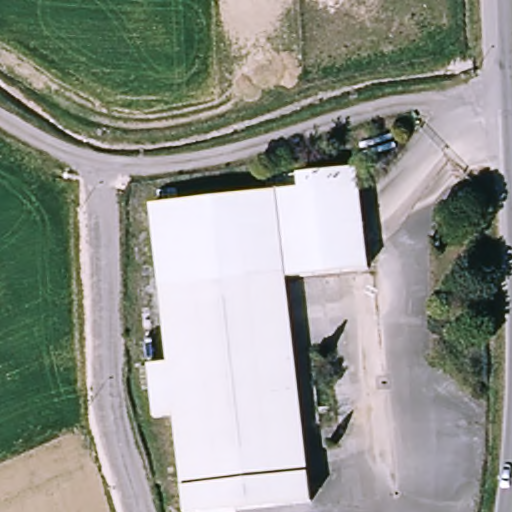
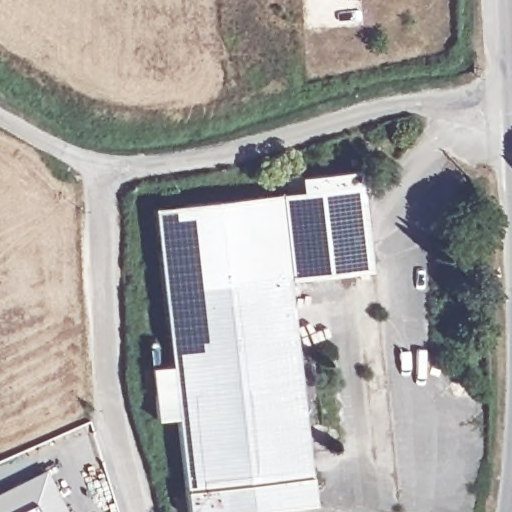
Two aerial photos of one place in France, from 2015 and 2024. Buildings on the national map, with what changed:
unchanged [(280,282),(314,505),(265,512),(188,512),(175,424),(155,428),(148,379),(168,376),(145,214),(201,207),(291,194),(289,180),(350,171),(365,269),(280,282)]
new [(46,468),(68,512),(0,512),(0,491),(46,468)]

